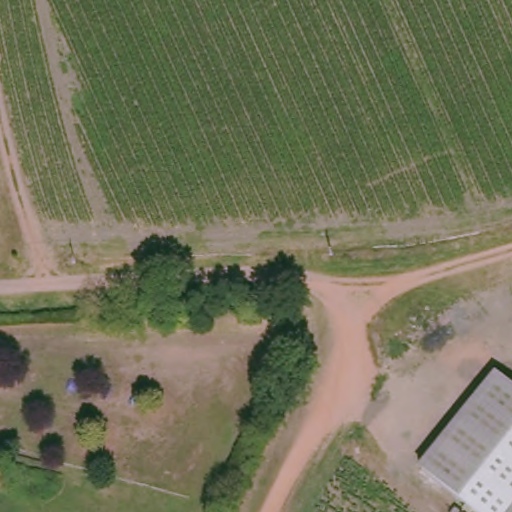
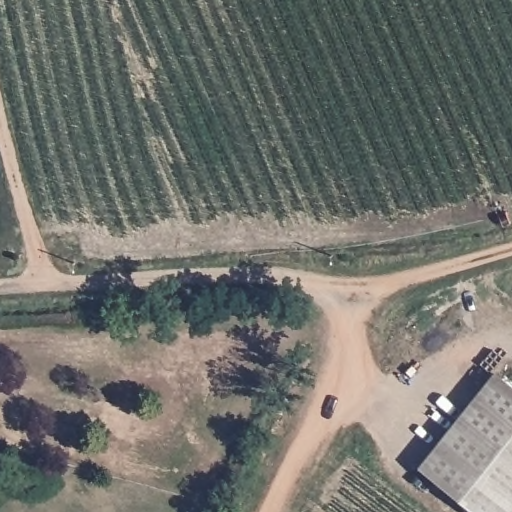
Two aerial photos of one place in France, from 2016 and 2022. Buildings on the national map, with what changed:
unchanged [(512,387),(512,512),(477,512),(423,469),(498,376),(512,387)]

